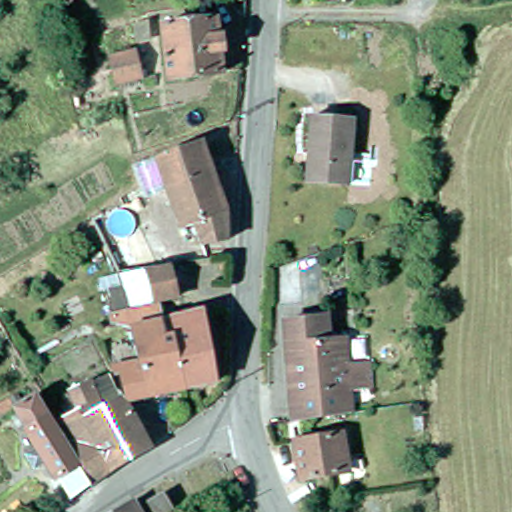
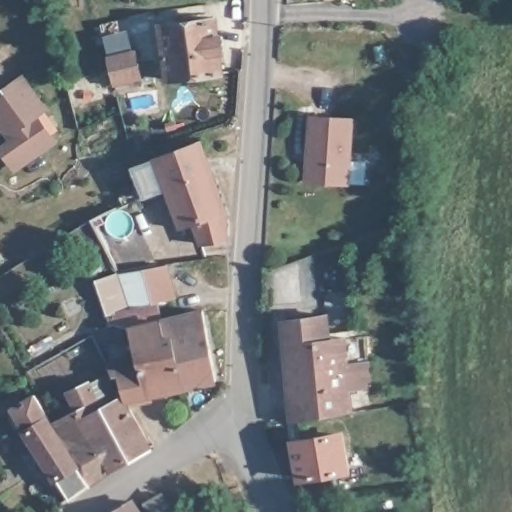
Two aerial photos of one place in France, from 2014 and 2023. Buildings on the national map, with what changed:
unchanged [(210,13),(211,20),(220,19),(225,74),(170,80),(164,25),(186,22),(185,16),(210,13)]
new [(143,79),(113,85),(107,54),(136,47),(143,79)]
new [(50,109),(40,115),(56,141),(15,172),(0,151),(0,145),(7,140),(0,130),(0,96),(6,92),(3,87),(25,71),(50,109)]
unchanged [(351,125),(346,192),(305,188),(311,121),(351,125)]
unchanged [(207,247),(200,228),(185,231),(168,181),(145,187),(139,170),(161,162),(205,146),(230,214),(230,241),(207,247)]
unchanged [(180,304),(162,307),(134,313),(121,277),(170,271),(180,304)]
unchanged [(144,366),(143,358),(135,360),(133,350),(140,349),(135,324),(125,325),(125,319),(115,321),(110,301),(118,299),(117,293),(124,291),(132,313),(134,313),(162,307),(167,325),(170,338),(171,340),(175,340),(176,340),(185,376),(189,392),(130,404),(124,370),(144,366)]
unchanged [(208,317),(221,386),(189,392),(185,376),(176,340),(175,340),(171,340),(170,338),(167,325),(208,317)]
unchanged [(292,426),(284,325),(330,322),(331,345),(367,342),(368,356),(371,393),(371,398),(350,400),(351,423),(292,426)]
unchanged [(130,404),(135,415),(155,451),(118,475),(85,415),(83,410),(77,400),(93,391),(107,414),(128,402),(130,404)]
unchanged [(43,456),(16,415),(40,400),(55,425),(68,446),(95,492),(75,505),(49,465),(38,471),(33,462),(43,456)]
unchanged [(95,492),(68,446),(72,443),(63,427),(85,415),(118,475),(95,492)]
unchanged [(305,478),(302,442),(350,440),(352,475),(305,478)]
unchanged [(145,511),(160,503),(165,512),(146,512),(145,511)]
unchanged [(135,512),(123,512),(132,506),(135,512)]

